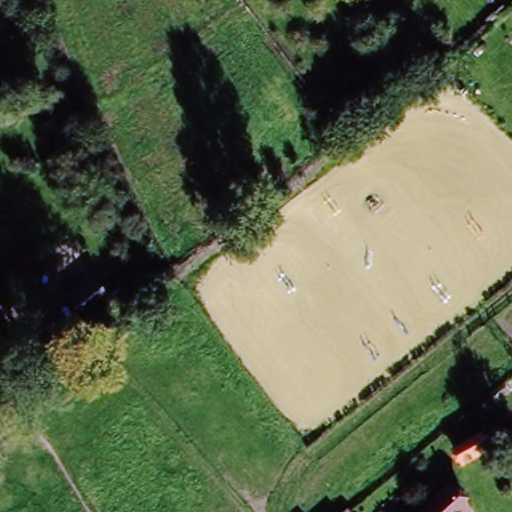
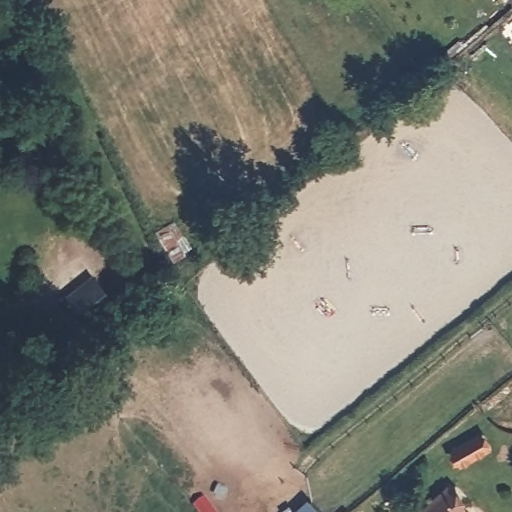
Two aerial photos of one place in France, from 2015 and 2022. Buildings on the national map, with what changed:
unchanged [(506,0),(512,0),(512,8),(506,0)]
unchanged [(462,512),(429,512),(449,496),(462,512)]

